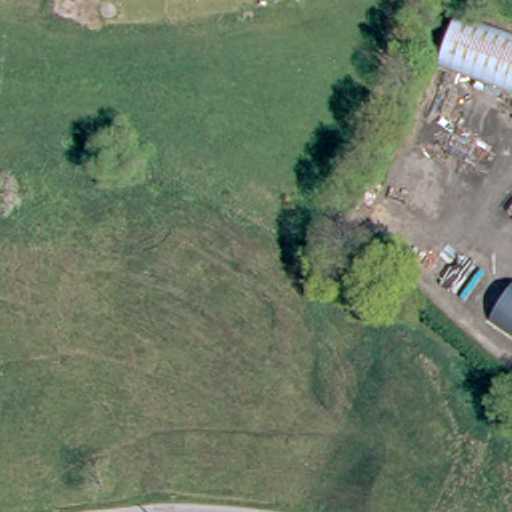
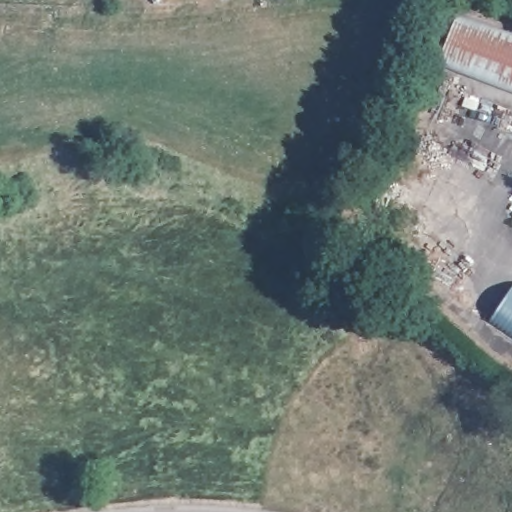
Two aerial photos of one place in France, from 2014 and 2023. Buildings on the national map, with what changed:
unchanged [(512,38),(512,97),(442,72),(439,72),(457,21),(469,24),(512,38)]
unchanged [(488,322),(512,287),(512,339),(488,322)]

